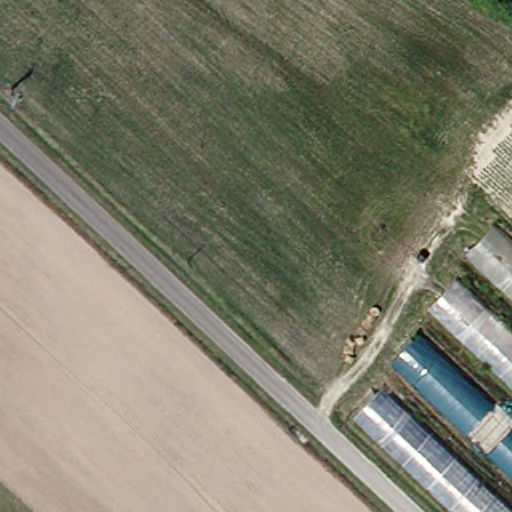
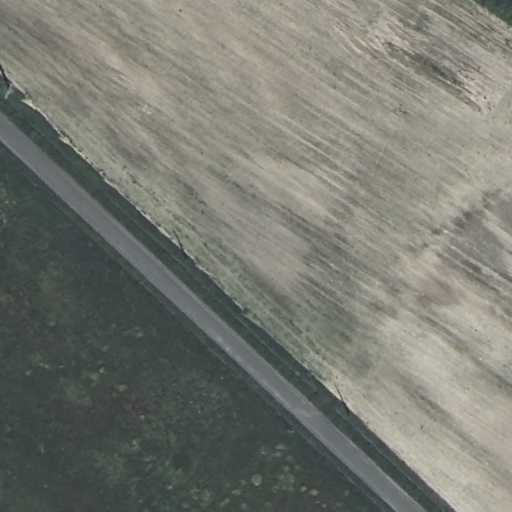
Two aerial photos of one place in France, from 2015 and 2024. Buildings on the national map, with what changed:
demolished [(470,252),(500,222),(512,234),(512,291),(470,252)]
demolished [(430,303),(460,272),(512,322),(512,381),(430,303)]
demolished [(392,355),(421,327),(512,414),(512,469),(392,355)]
demolished [(512,503),(512,512),(462,512),(358,413),(386,383),(512,503)]

